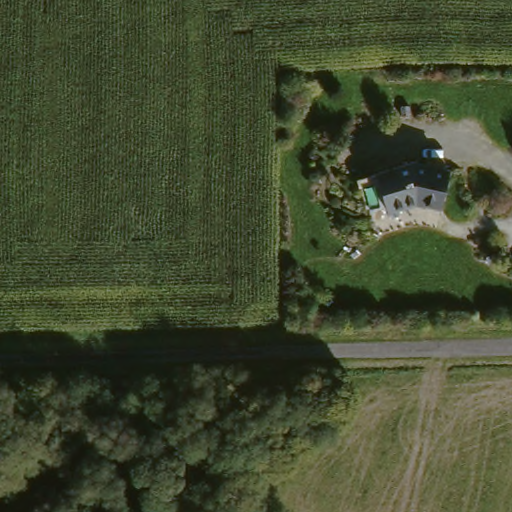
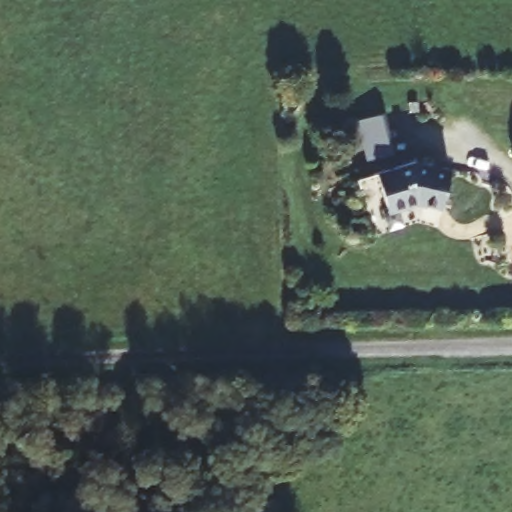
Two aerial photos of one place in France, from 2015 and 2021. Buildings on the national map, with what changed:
new [(358,120),(384,112),(394,155),(368,161),(358,120)]
unchanged [(412,165),(440,172),(432,213),(409,209),(379,214),(369,176),(412,165)]

